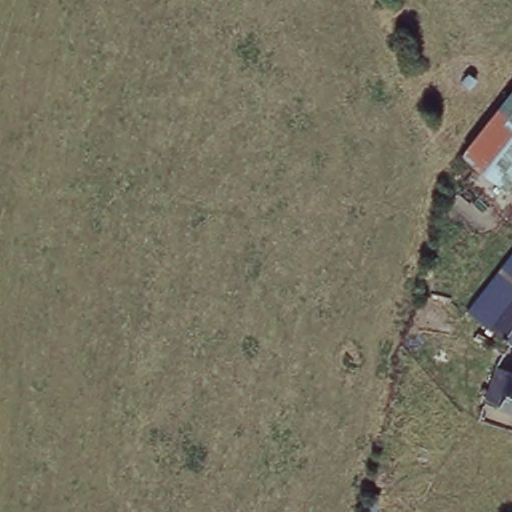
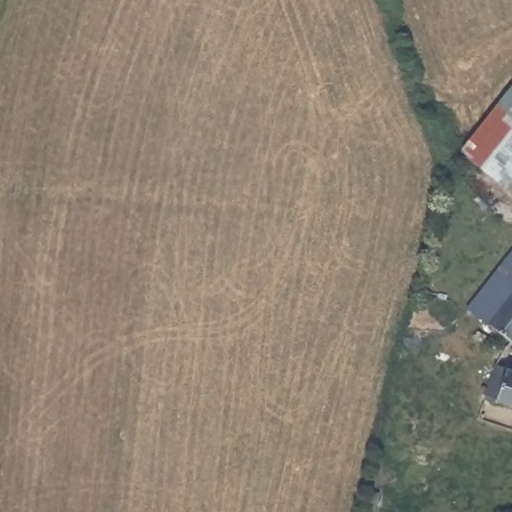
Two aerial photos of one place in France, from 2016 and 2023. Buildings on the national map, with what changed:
unchanged [(465,156),(512,97),(512,176),(503,187),(465,156)]
unchanged [(493,323),(490,328),(484,323),(487,318),(467,303),(512,246),(512,338),(493,323)]
unchanged [(512,372),(512,409),(495,403),(506,369),(512,372)]

